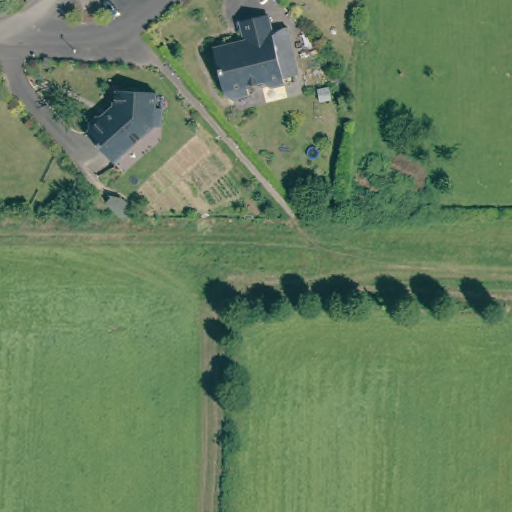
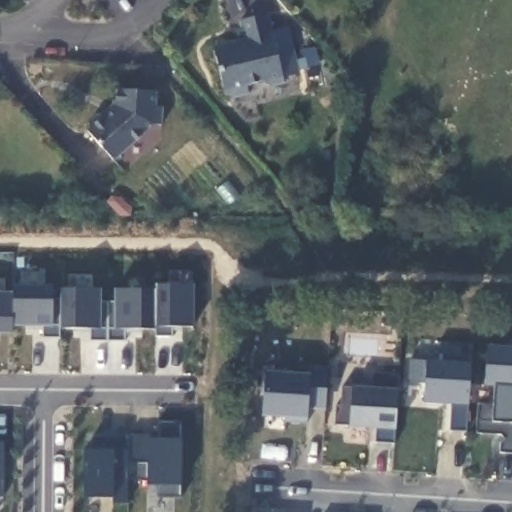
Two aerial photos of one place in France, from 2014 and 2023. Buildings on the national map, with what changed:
unchanged [(278,77),(280,82),(265,85),(258,81),(242,85),(245,94),(227,98),(219,93),(208,50),(233,43),(234,47),(242,45),(235,21),(262,14),(267,30),(283,26),(290,55),(294,73),(278,77)]
unchanged [(97,122),(110,110),(111,95),(151,96),(150,111),(157,111),(157,129),(150,129),(109,165),(83,136),(86,134),(86,126),(92,121),(97,122)]
new [(13,292),(13,286),(154,289),(155,283),(193,285),(191,327),(172,326),(171,336),(155,336),(155,329),(124,329),(124,341),(89,340),(89,329),(58,328),(58,337),(42,337),(42,326),(12,325),(12,333),(0,333),(0,293),(13,292)]
new [(451,405),(425,402),(424,384),(408,383),(409,360),(426,360),(442,361),(443,345),(462,347),(463,356),(471,356),(466,431),(450,430),(451,405)]
new [(496,386),(485,386),(487,346),(512,348),(512,453),(499,452),(500,443),(505,440),(500,433),(477,433),(477,405),(495,406),(496,386)]
new [(309,367),(327,367),(325,410),(306,408),(306,418),(262,416),(265,371),(309,375),(309,367)]
new [(399,375),(393,443),(375,442),(375,427),(350,426),(336,425),(337,406),(341,406),(341,387),(352,387),(372,388),(373,373),(399,375)]
new [(181,422),(182,441),(181,486),(180,497),(157,497),(157,485),(147,485),(148,440),(158,440),(158,422),(181,422)]
new [(111,498),(83,497),(85,450),(92,450),(93,439),(128,439),(126,503),(112,503),(111,498)]
new [(0,497),(0,443),(4,443),(3,482),(1,497),(0,497)]

